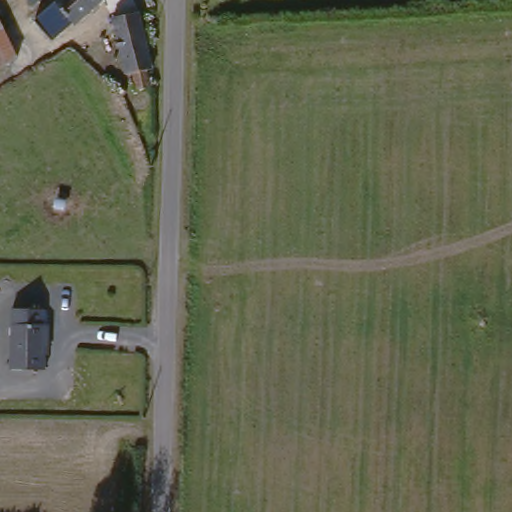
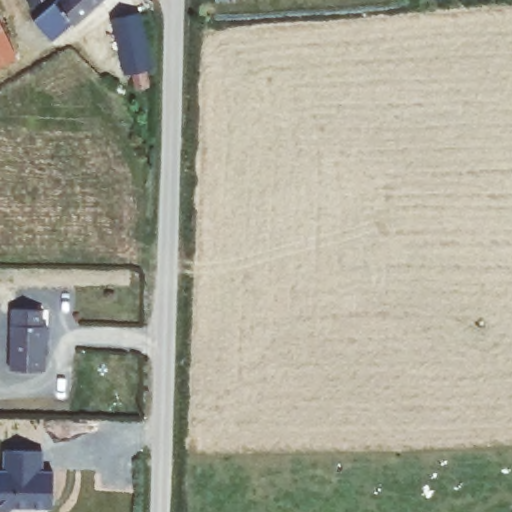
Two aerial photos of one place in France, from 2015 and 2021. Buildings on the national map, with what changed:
unchanged [(20,12),(17,0),(52,0),(53,5),(20,12)]
unchanged [(59,0),(109,0),(75,29),(53,5),(59,0)]
unchanged [(134,15),(148,74),(119,80),(108,21),(134,15)]
unchanged [(3,64),(0,65),(0,29),(14,59),(3,64)]
unchanged [(46,314),(44,376),(9,373),(10,312),(46,314)]
new [(42,470),(54,470),(53,508),(14,507),(9,512),(1,512),(0,511),(0,470),(3,469),(4,450),(43,451),(42,470)]

